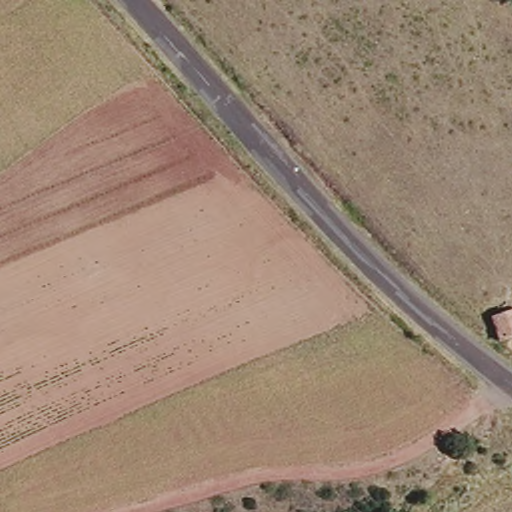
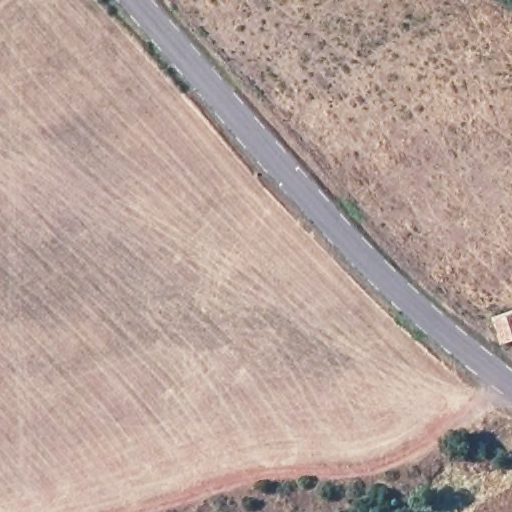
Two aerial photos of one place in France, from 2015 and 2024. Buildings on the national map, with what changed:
unchanged [(488,315),(512,309),(512,337),(496,342),(488,315)]

